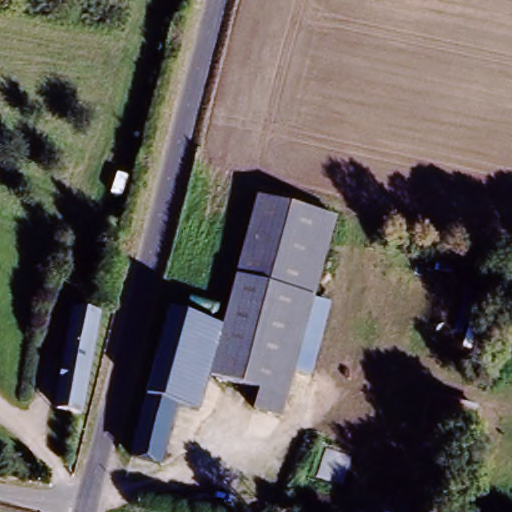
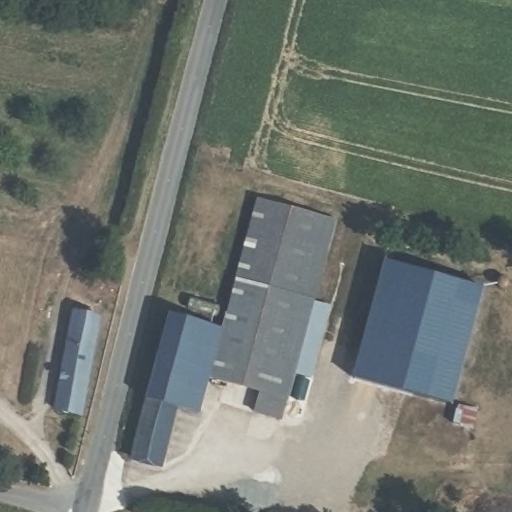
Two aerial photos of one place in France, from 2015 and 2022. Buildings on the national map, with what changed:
unchanged [(265,200),(338,225),(277,423),(251,415),(257,398),(209,380),(223,337),(265,200)]
new [(484,286),(452,405),(352,378),(384,260),(484,286)]
unchanged [(73,414),(48,404),(79,313),(104,322),(73,414)]
unchanged [(145,402),(171,319),(196,328),(171,411),(145,402)]
unchanged [(223,337),(209,380),(195,420),(171,411),(196,328),(223,337)]
demolished [(445,413),(452,382),(473,387),(465,417),(445,413)]
unchanged [(145,402),(171,411),(154,471),(126,462),(145,402)]

